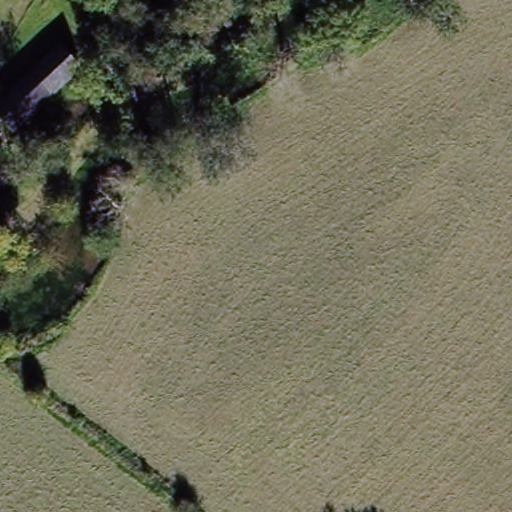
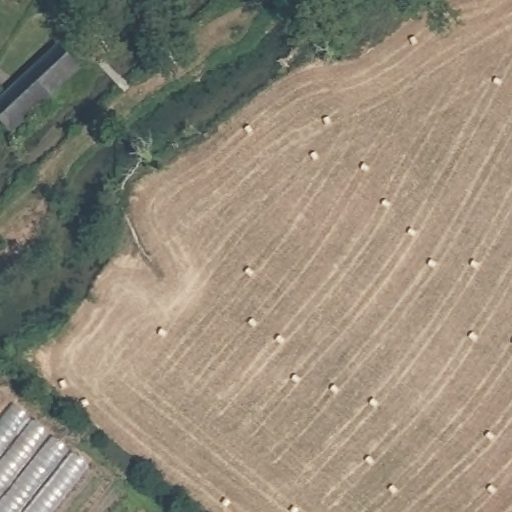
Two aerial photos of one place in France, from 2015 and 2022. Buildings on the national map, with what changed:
unchanged [(0,108),(0,105),(67,49),(82,66),(14,126),(0,108)]
new [(58,512),(0,512),(0,427),(17,406),(93,468),(58,512)]

